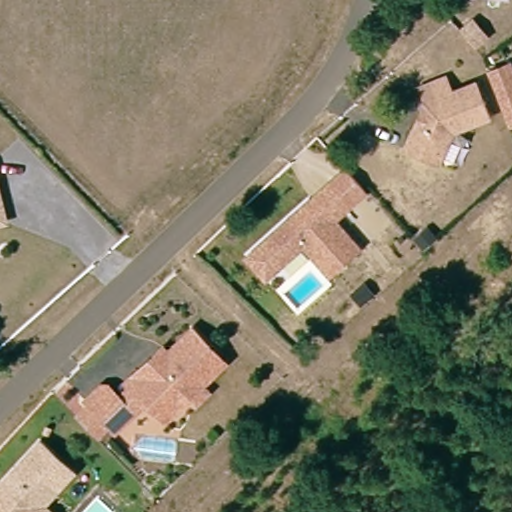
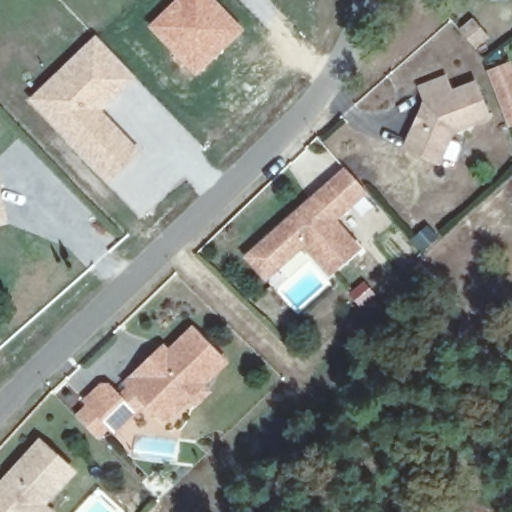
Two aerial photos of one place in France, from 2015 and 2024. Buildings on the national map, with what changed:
new [(173,0),(216,0),(244,29),(195,76),(146,25),(173,0)]
new [(95,33),(135,77),(101,109),(139,149),(105,182),(26,99),(95,33)]
unchanged [(510,110),(495,74),(512,68),(512,116),(510,110)]
unchanged [(461,127),(447,159),(444,157),(410,142),(428,100),(422,85),(449,75),(455,90),(483,79),(497,113),(461,127)]
unchanged [(247,261),(258,251),(287,225),(289,227),(315,204),(313,202),(329,188),(345,174),(365,196),(349,210),(333,224),(358,252),(330,277),(304,248),(277,272),(266,282),(247,261)]
unchanged [(0,185),(9,218),(0,220),(0,185)]
unchanged [(151,406),(132,386),(143,375),(168,350),(173,356),(197,332),(230,366),(208,388),(169,425),(151,406)]
unchanged [(121,434),(112,425),(91,404),(107,389),(114,389),(131,407),(140,416),(121,434)]
unchanged [(41,445),(74,474),(44,507),(49,512),(0,512),(0,490),(17,471),(41,445)]

